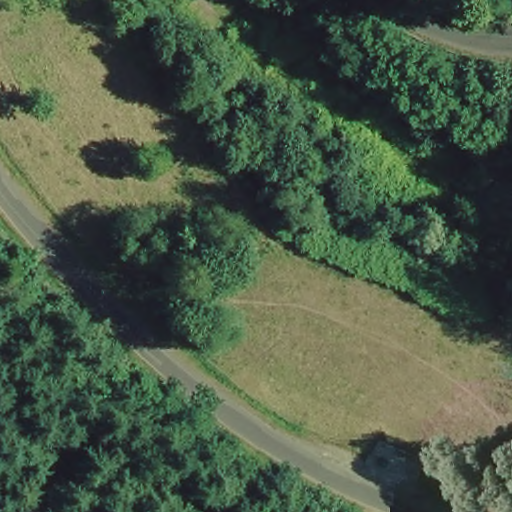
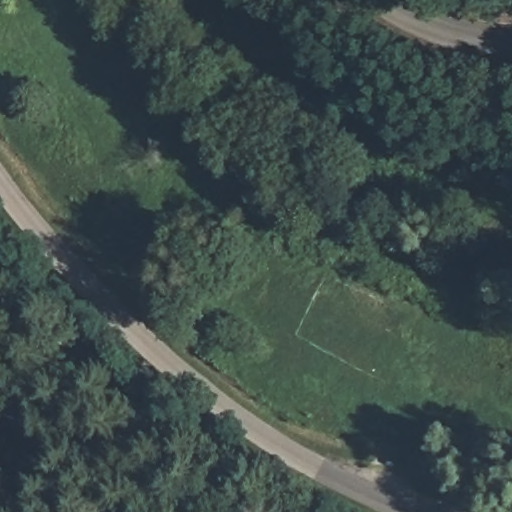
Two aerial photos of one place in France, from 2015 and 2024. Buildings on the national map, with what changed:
[]

